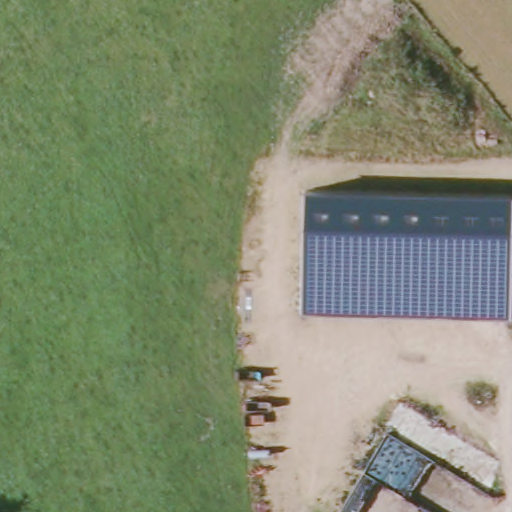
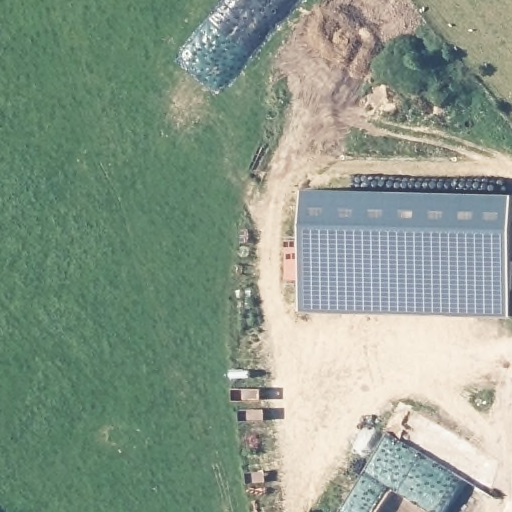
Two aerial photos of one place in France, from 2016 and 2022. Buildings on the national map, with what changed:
unchanged [(303,309),(305,189),(512,193),(512,263),(510,315),(303,309)]

